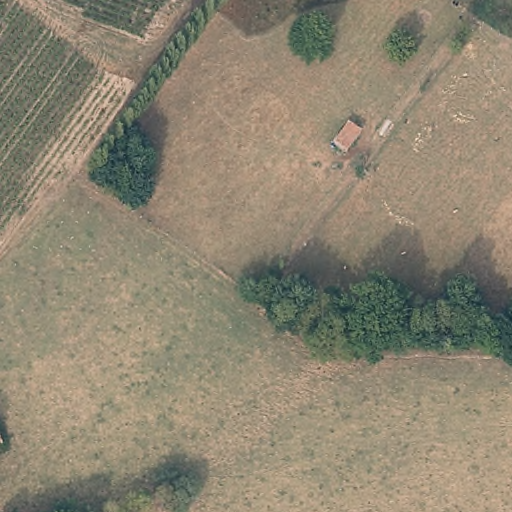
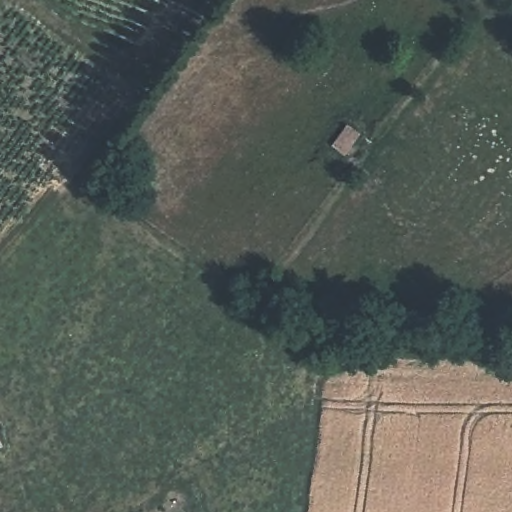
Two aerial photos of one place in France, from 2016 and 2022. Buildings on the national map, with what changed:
unchanged [(360,129),(343,152),(329,141),(346,121),(360,129)]
unchanged [(0,461),(0,458),(1,461),(0,461)]

